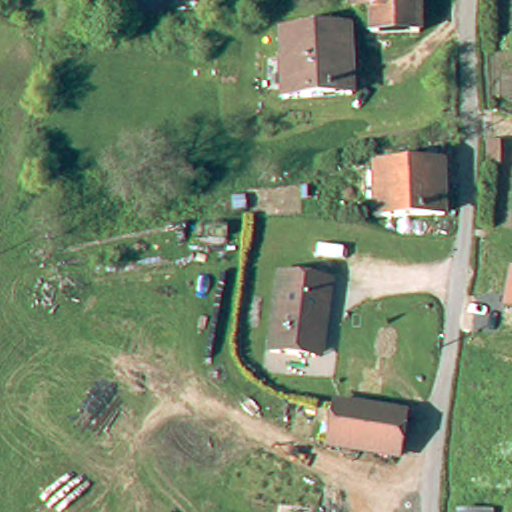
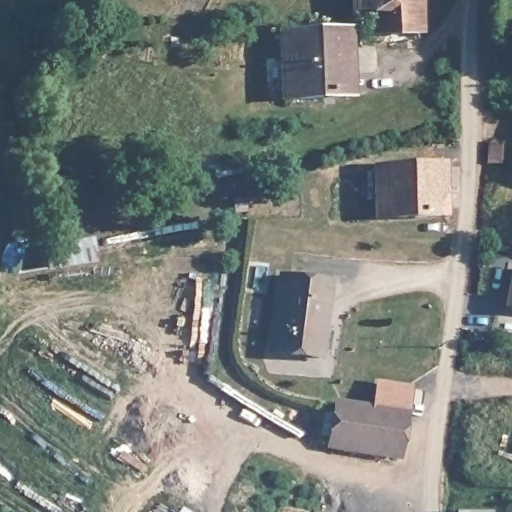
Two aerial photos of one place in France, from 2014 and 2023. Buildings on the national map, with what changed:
unchanged [(375,13),(356,13),(356,10),(356,0),(422,0),(422,33),(376,34),(376,28),(375,13)]
unchanged [(356,95),(289,99),(286,38),(355,35),(356,71),(356,95)]
unchanged [(446,174),(447,220),(380,224),(380,175),(446,174)]
unchanged [(503,310),(509,270),(512,271),(512,312),(503,310)]
unchanged [(316,358),(306,356),(272,351),(283,275),(321,280),(328,282),(326,299),(331,300),(328,323),(322,359),(316,358)]
unchanged [(398,454),(328,442),(336,399),(381,408),(405,412),(404,420),(398,454)]

